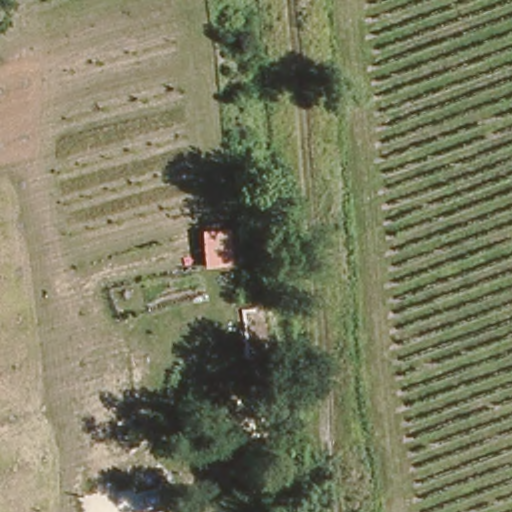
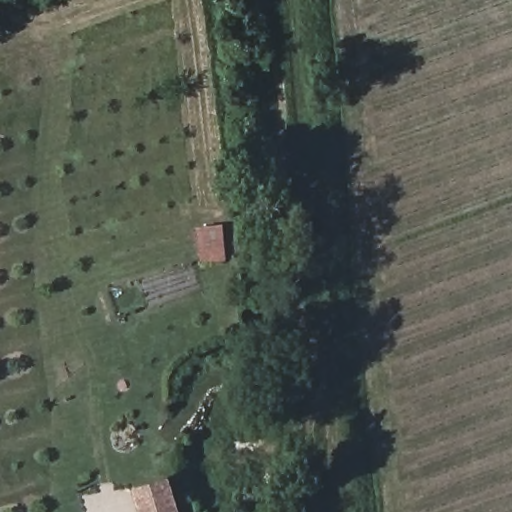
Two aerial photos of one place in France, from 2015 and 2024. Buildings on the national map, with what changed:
new [(140,491),(174,478),(185,512),(145,512),(140,491)]

